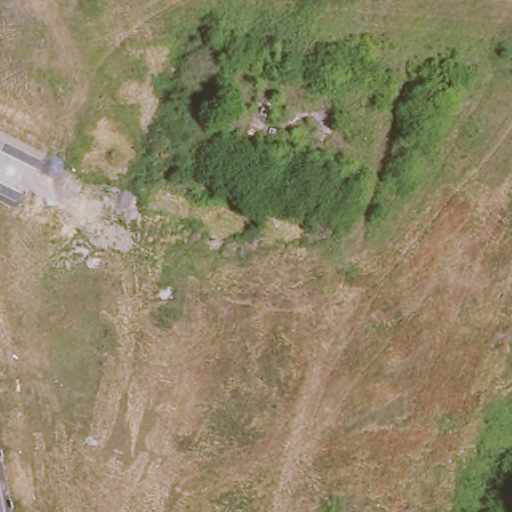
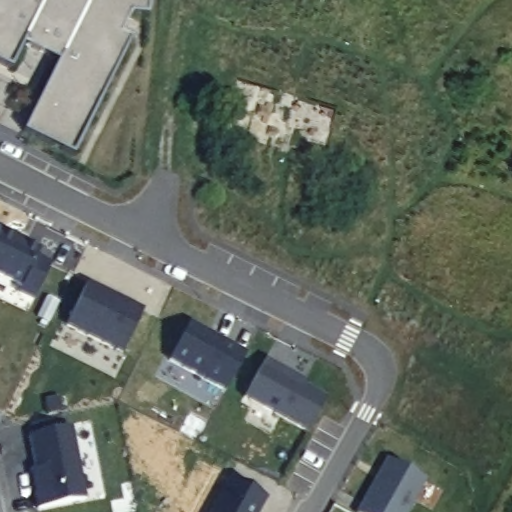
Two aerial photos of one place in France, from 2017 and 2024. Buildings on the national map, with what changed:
new [(147,16),(130,15),(120,33),(131,39),(72,156),(22,132),(57,61),(22,44),(10,70),(0,65),(0,0),(148,0),(147,16)]
new [(35,256),(49,264),(31,300),(16,291),(19,285),(0,276),(0,229),(15,236),(14,239),(38,250),(35,256)]
new [(141,310),(120,353),(64,325),(85,282),(141,310)]
new [(188,323),(206,333),(205,335),(214,340),(216,338),(244,354),(223,391),(167,360),(188,323)]
new [(263,360),(293,376),(291,381),(324,399),(305,432),(242,398),(263,360)]
new [(293,376),(302,382),(300,386),(291,381),(293,376)]
new [(34,468),(28,435),(69,427),(83,500),(36,508),(33,493),(29,469),(34,468)]
new [(424,481),(406,512),(357,512),(386,460),(424,481)]
new [(266,500),(259,512),(209,512),(227,478),(266,500)]

